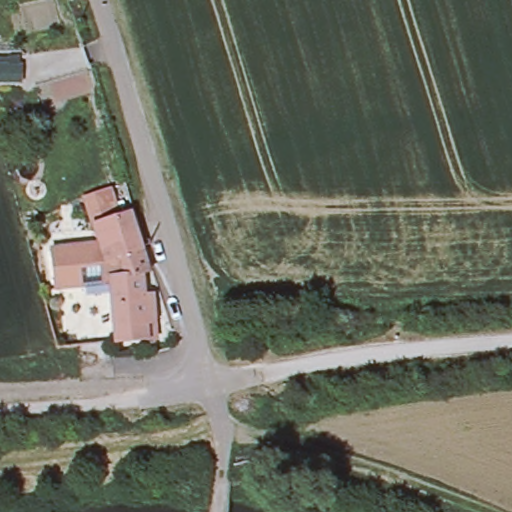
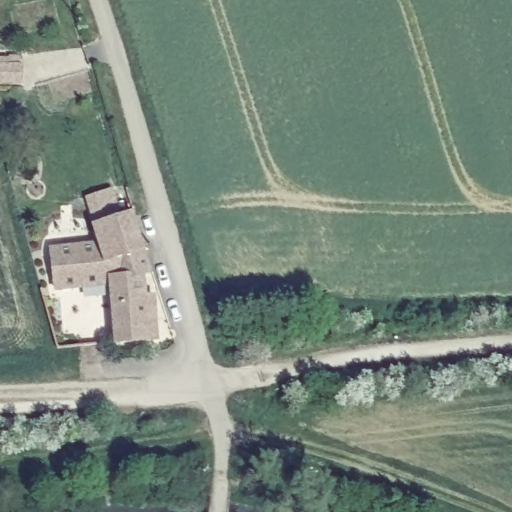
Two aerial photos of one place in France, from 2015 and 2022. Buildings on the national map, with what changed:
unchanged [(100,239),(95,223),(88,195),(112,189),(119,214),(133,209),(151,267),(142,269),(145,294),(152,294),(155,322),(147,323),(149,336),(119,340),(112,279),(90,280),(80,244),(100,239)]
unchanged [(55,284),(52,249),(80,244),(90,280),(55,284)]

